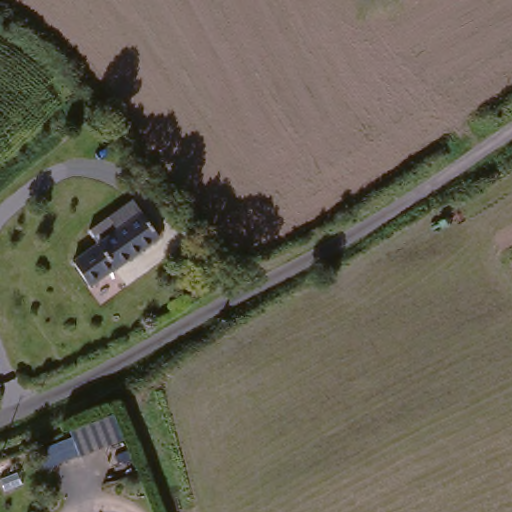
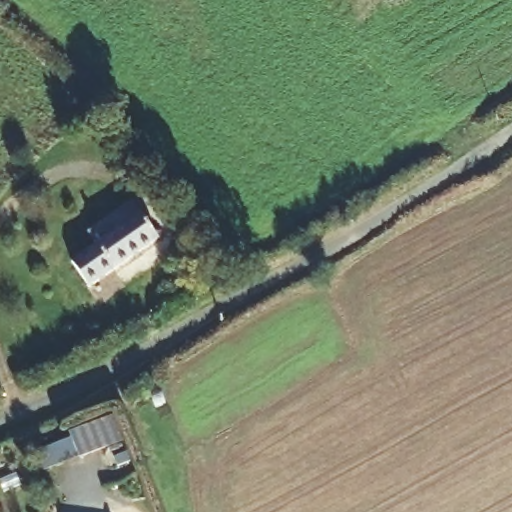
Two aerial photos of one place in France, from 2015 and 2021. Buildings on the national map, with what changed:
unchanged [(153,241),(93,295),(70,267),(104,236),(95,225),(98,221),(119,202),(153,241)]

